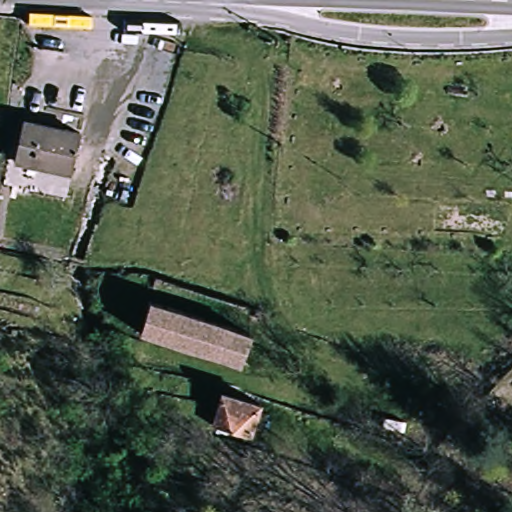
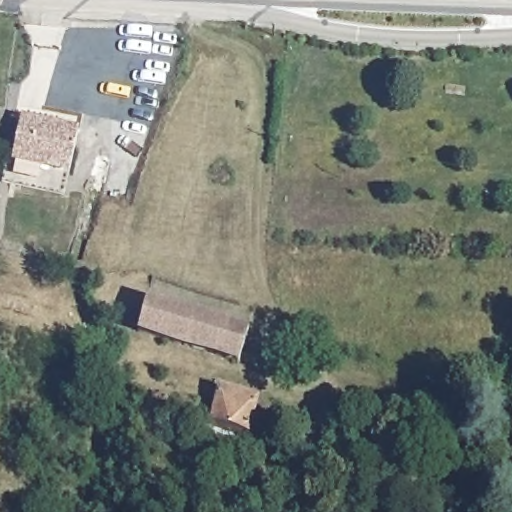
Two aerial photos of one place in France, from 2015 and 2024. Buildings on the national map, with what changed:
unchanged [(18,162),(22,129),(77,135),(75,167),(18,162)]
unchanged [(238,362),(142,327),(150,300),(247,332),(238,362)]
unchanged [(217,425),(226,395),(259,407),(248,437),(217,425)]

